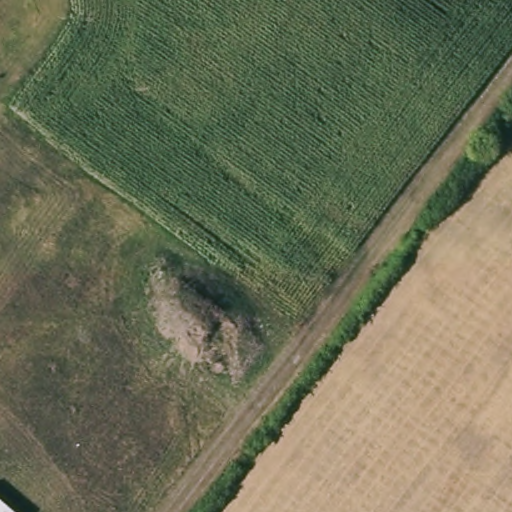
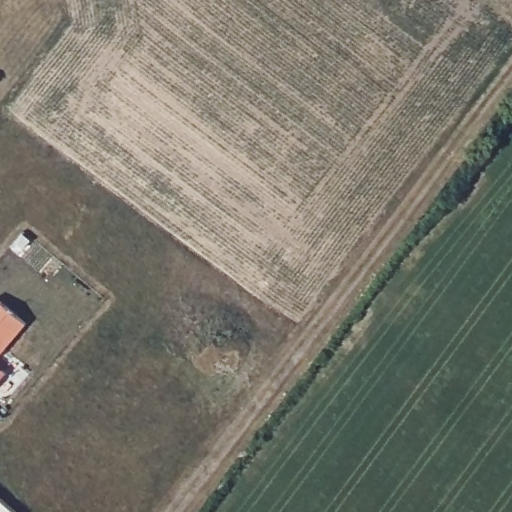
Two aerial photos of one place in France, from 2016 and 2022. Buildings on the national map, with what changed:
new [(0,354),(0,301),(26,322),(0,354)]
new [(0,379),(0,367),(6,372),(0,379)]
unchanged [(0,512),(0,499),(15,512),(0,512)]

